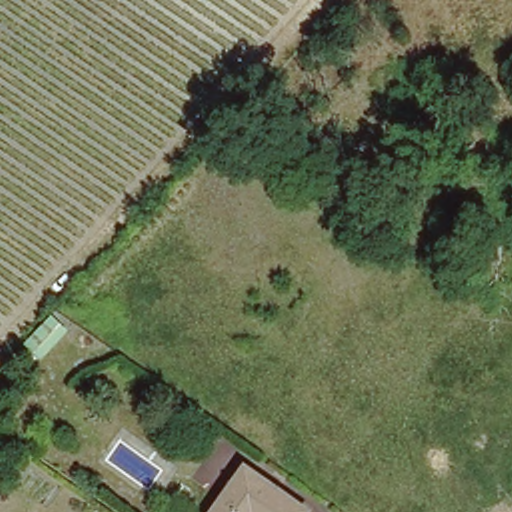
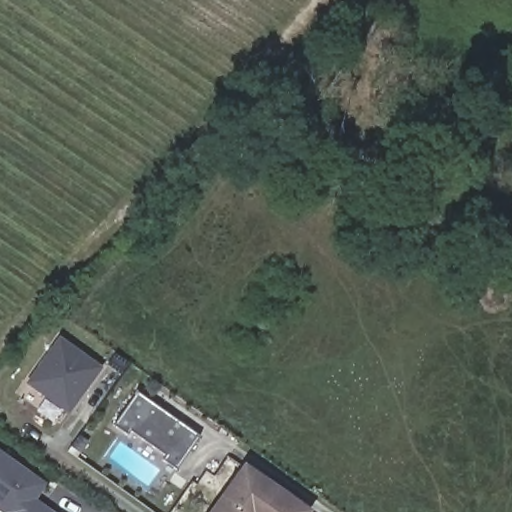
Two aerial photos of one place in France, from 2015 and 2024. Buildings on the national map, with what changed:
new [(69,415),(25,383),(59,336),(103,367),(69,415)]
new [(175,470),(111,426),(135,391),(199,435),(175,470)]
new [(35,500),(52,512),(1,512),(0,511),(0,451),(46,484),(35,500)]
unchanged [(300,512),(205,512),(242,462),(273,485),(304,507),(300,512)]

